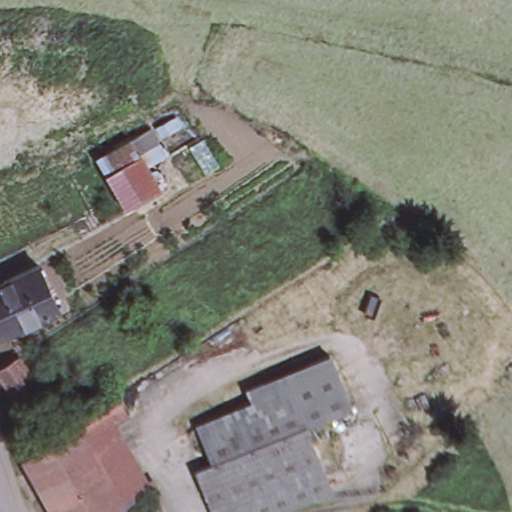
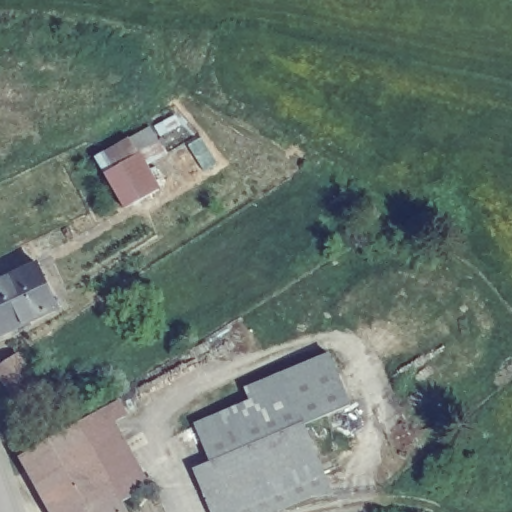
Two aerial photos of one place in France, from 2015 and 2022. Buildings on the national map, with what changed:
unchanged [(68,171),(149,127),(155,139),(74,182),(68,171)]
unchanged [(164,154),(144,165),(150,174),(93,206),(89,208),(74,182),(155,139),(164,154)]
unchanged [(93,206),(150,174),(159,189),(97,224),(89,208),(93,206)]
unchanged [(0,282),(36,264),(40,271),(52,297),(57,308),(0,336),(0,282)]
unchanged [(0,371),(23,352),(42,383),(15,400),(0,380),(0,371)]
unchanged [(350,408),(305,427),(249,450),(210,465),(195,431),(335,372),(344,394),(350,408)]
unchanged [(20,456),(77,423),(117,399),(126,414),(115,420),(120,429),(137,460),(147,479),(150,477),(154,483),(120,501),(114,488),(72,512),(51,512),(35,483),(30,475),(20,456)]
unchanged [(323,475),(236,512),(209,512),(196,481),(193,473),(210,465),(249,450),(305,427),(323,475)]
unchanged [(332,497),(312,498),(280,512),(236,512),(323,475),(332,497)]
unchanged [(120,501),(126,512),(72,512),(114,488),(120,501)]

